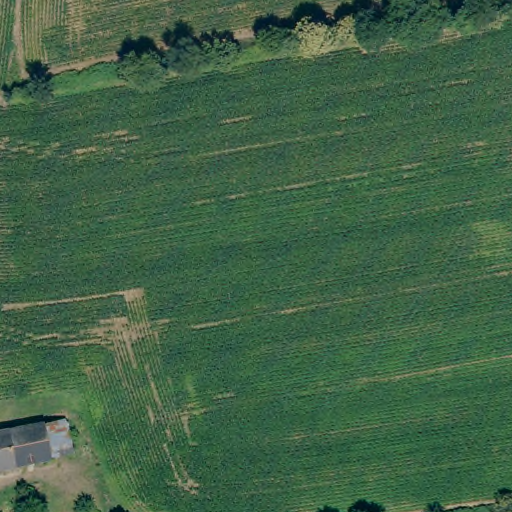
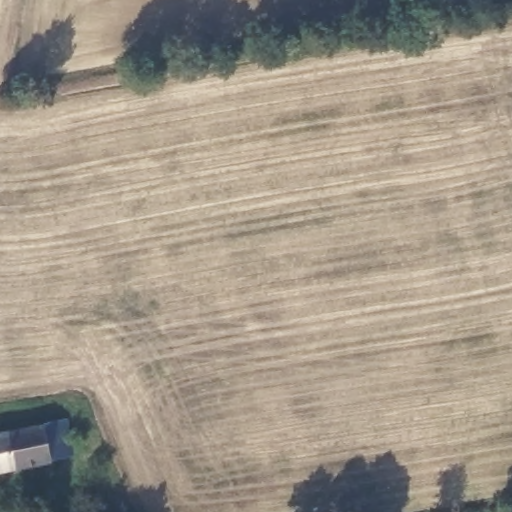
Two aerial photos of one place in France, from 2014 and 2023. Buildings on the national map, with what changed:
unchanged [(0,454),(0,436),(12,433),(31,428),(53,424),(60,457),(4,469),(0,454)]
unchanged [(0,454),(4,469),(0,470),(0,454)]

